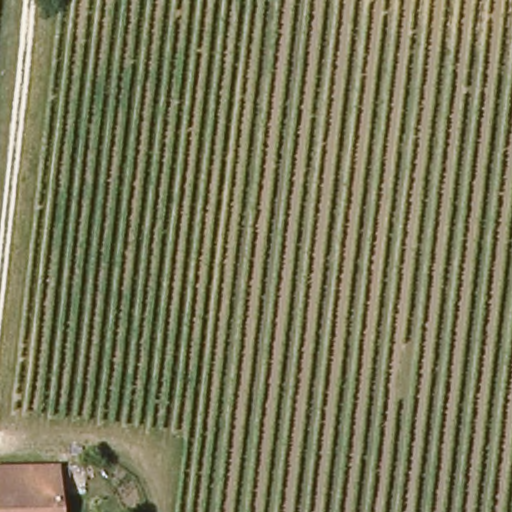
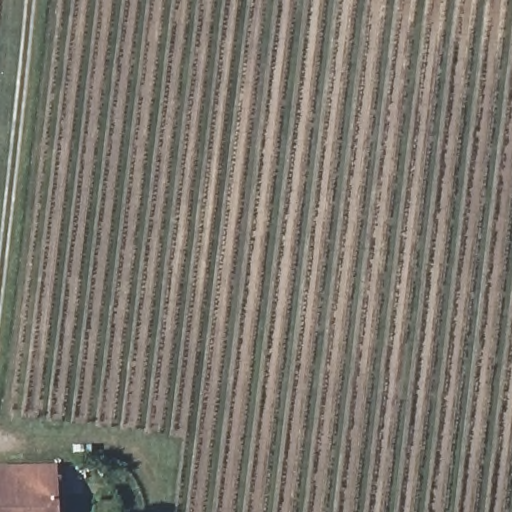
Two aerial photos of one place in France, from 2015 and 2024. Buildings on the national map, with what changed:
unchanged [(58,458),(62,512),(0,512),(0,461),(58,458)]

